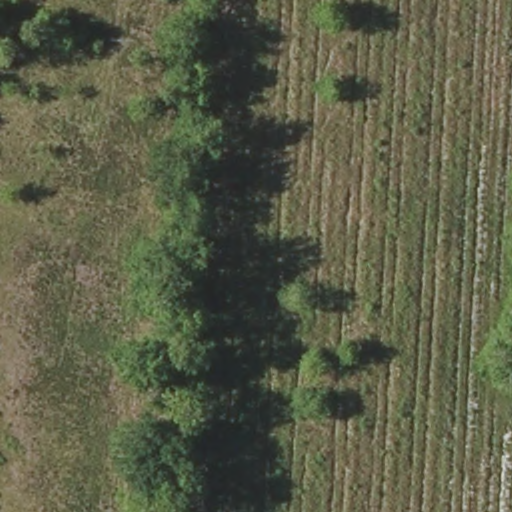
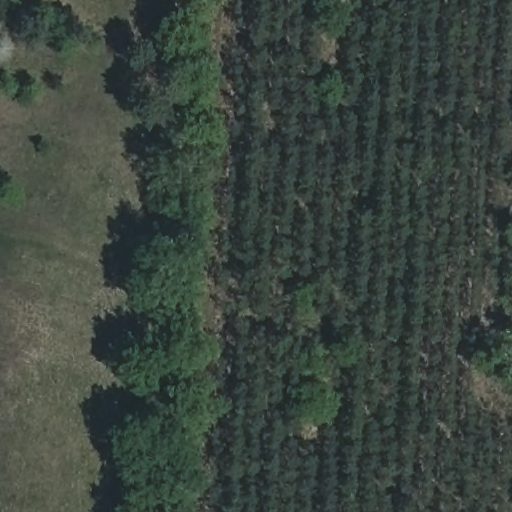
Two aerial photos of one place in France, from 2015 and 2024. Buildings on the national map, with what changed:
[]

